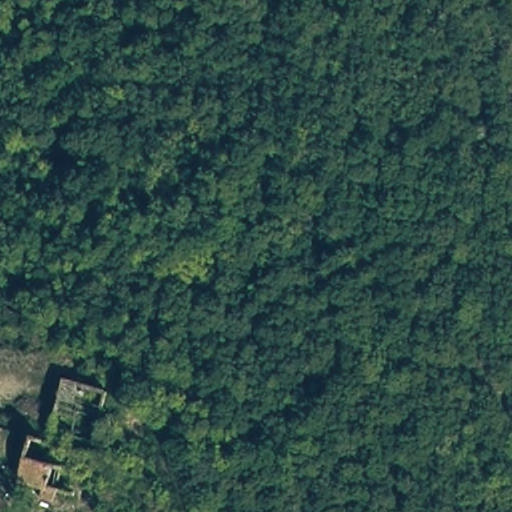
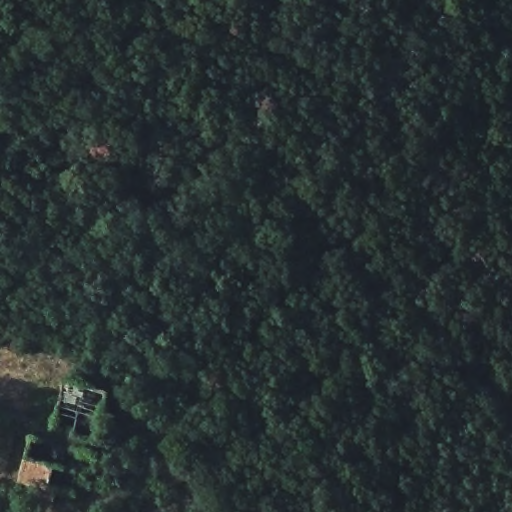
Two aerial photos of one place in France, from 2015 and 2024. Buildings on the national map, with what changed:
unchanged [(47,489),(17,481),(23,463),(51,471),(47,489)]

